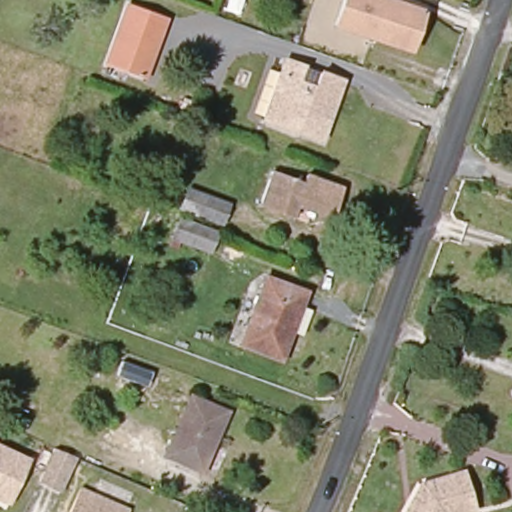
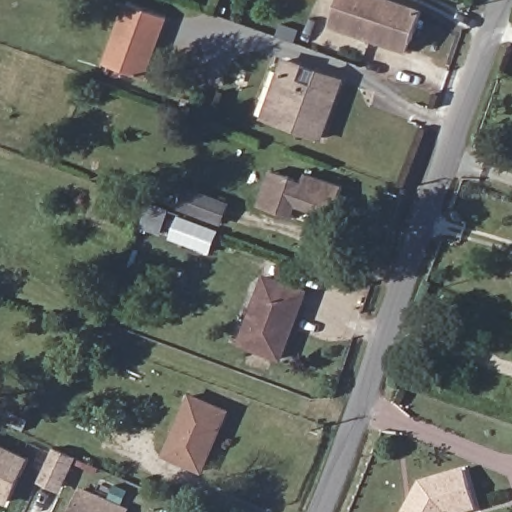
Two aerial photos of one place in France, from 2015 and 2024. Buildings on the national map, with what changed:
unchanged [(332,19),(338,0),(391,0),(420,9),(410,45),(332,19)]
unchanged [(167,19),(145,80),(106,66),(127,6),(167,19)]
unchanged [(337,83),(318,136),(272,119),(264,116),(278,76),(283,64),(337,83)]
unchanged [(302,182),(307,175),(342,188),(332,220),(296,208),(291,219),(255,207),(269,170),(302,182)]
unchanged [(215,221),(178,207),(185,188),(222,200),(215,221)]
unchanged [(207,248),(169,233),(177,212),(214,226),(207,248)]
unchanged [(266,279),(306,293),(282,355),(243,340),(266,279)]
unchanged [(190,394),(227,406),(202,469),(165,456),(190,394)]
unchanged [(77,456),(62,486),(42,477),(55,447),(77,456)]
unchanged [(27,461),(8,502),(0,498),(0,448),(27,461)]
unchanged [(421,486),(465,473),(477,511),(473,512),(407,512),(421,486)]
unchanged [(85,487),(128,507),(126,512),(73,512),(85,487)]

